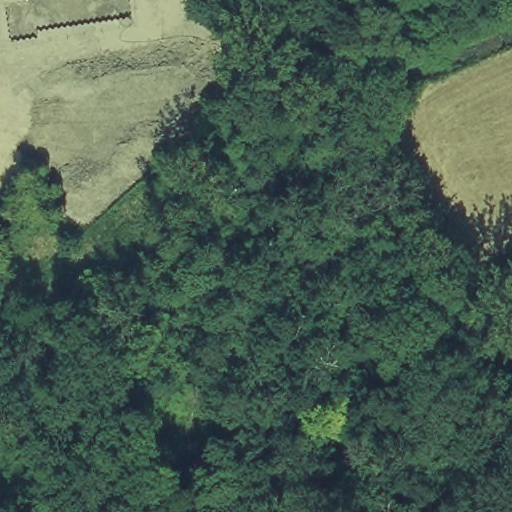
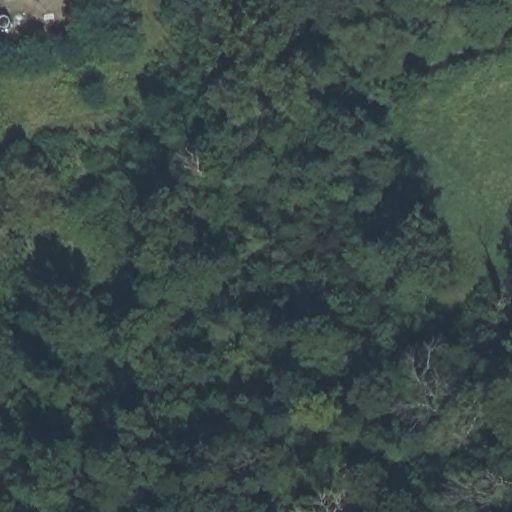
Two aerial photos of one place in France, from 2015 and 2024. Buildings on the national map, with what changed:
[]

